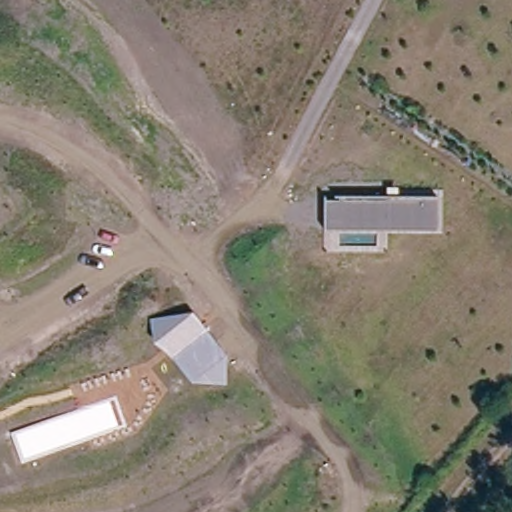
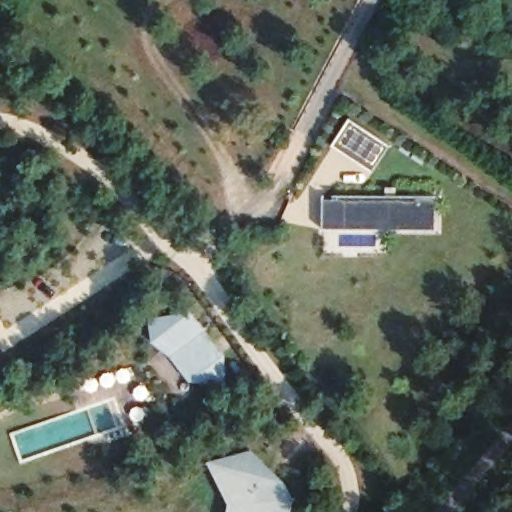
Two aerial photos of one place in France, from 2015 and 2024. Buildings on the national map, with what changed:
unchanged [(438,197),(439,230),(323,230),(323,197),(438,197)]
unchanged [(192,311),(207,329),(225,355),(225,385),(190,381),(172,354),(152,340),(151,318),(192,311)]
new [(230,504),(208,462),(252,450),(284,481),(294,501),(292,512),(228,512),(230,504)]

